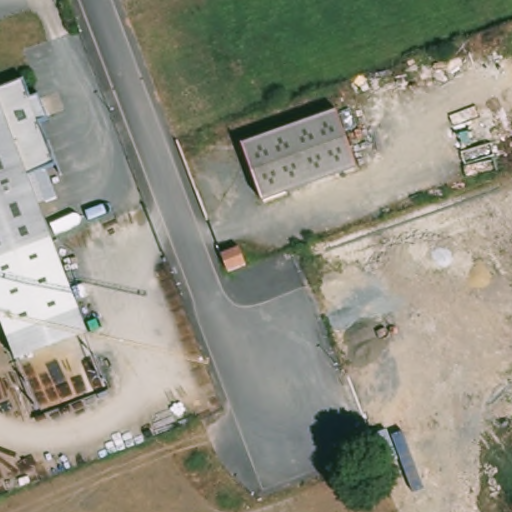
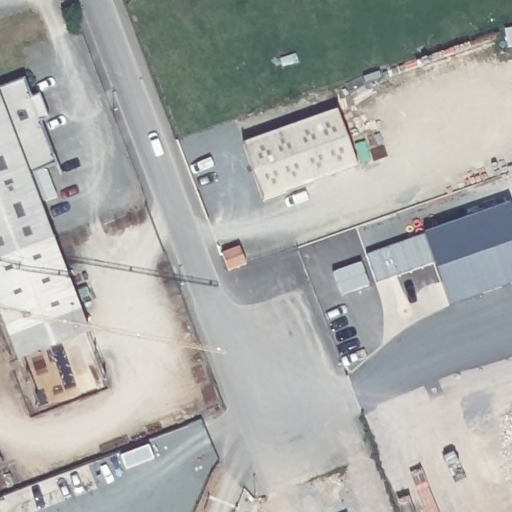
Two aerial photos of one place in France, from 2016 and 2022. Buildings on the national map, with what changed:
unchanged [(35,74),(41,92),(48,91),(58,116),(52,119),(66,161),(36,172),(59,237),(84,305),(8,332),(0,309),(0,74),(4,84),(35,74)]
unchanged [(330,106),(351,163),(256,197),(236,140),(330,106)]
new [(510,205),(512,211),(512,284),(449,306),(434,263),(376,284),(366,255),(510,205)]
unchanged [(242,263),(227,269),(222,253),(237,250),(242,263)]
unchanged [(91,328),(17,356),(8,332),(84,305),(91,328)]

